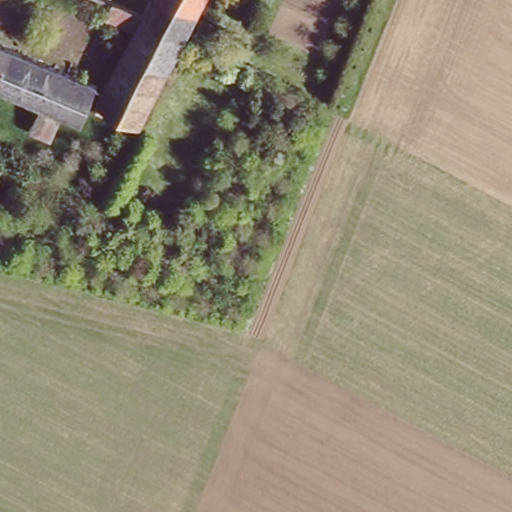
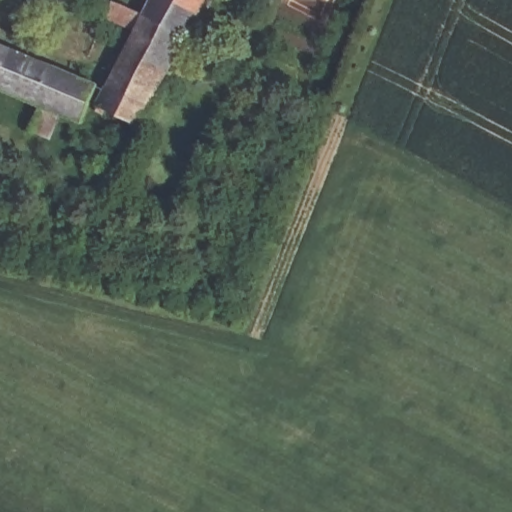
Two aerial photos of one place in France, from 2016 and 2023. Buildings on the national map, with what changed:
unchanged [(208,0),(187,36),(185,35),(146,19),(156,0),(208,0)]
unchanged [(120,128),(125,119),(97,105),(132,26),(122,21),(127,11),(137,16),(146,19),(185,35),(140,126),(133,141),(90,126),(95,118),(120,128)]
unchanged [(40,104),(0,86),(0,42),(96,85),(79,121),(65,115),(58,131),(33,120),(40,104)]

